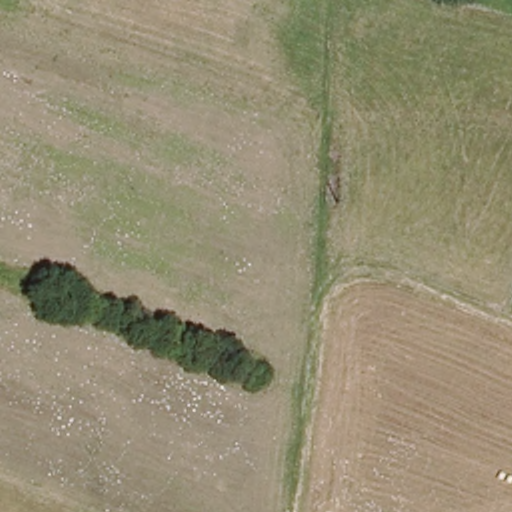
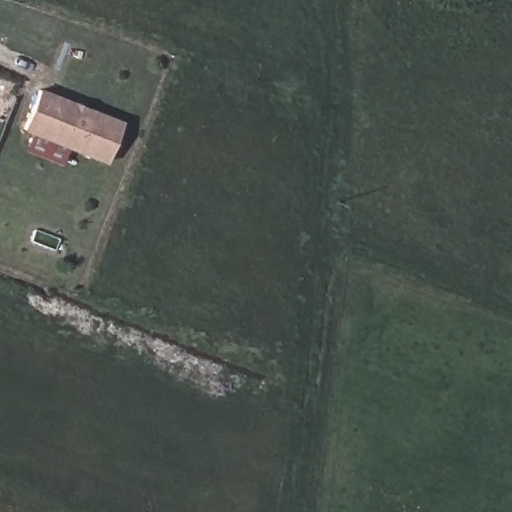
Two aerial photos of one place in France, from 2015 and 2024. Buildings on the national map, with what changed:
new [(107,163),(24,130),(40,88),(124,122),(107,163)]

